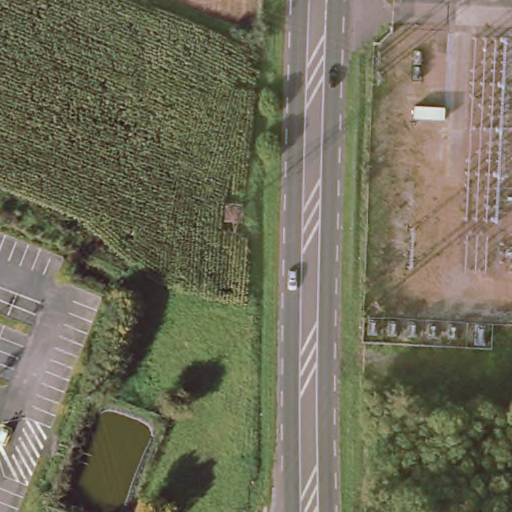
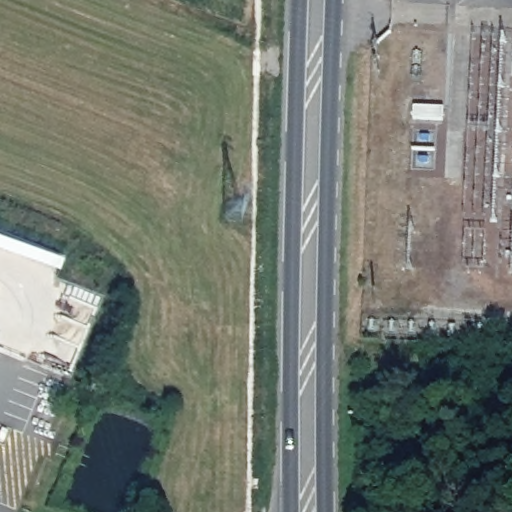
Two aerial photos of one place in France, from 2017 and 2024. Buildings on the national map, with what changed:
unchanged [(462,395),(462,451),(416,451),(416,395),(462,395)]

